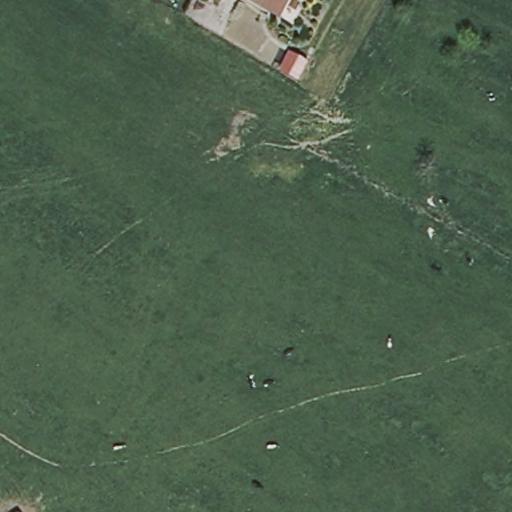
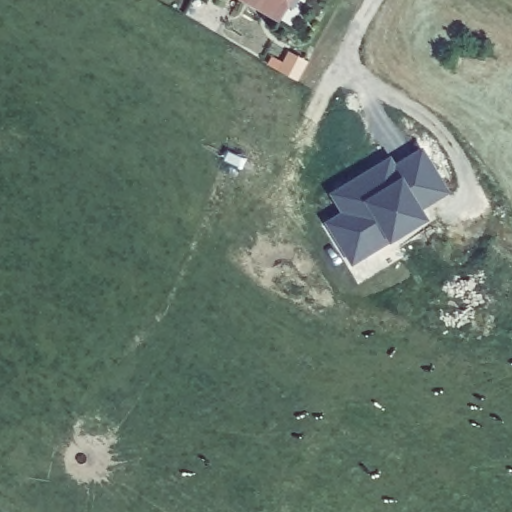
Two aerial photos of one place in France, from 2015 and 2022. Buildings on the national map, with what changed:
unchanged [(277,16),(250,0),(286,0),(277,16)]
new [(446,189),(450,197),(430,209),(437,217),(397,244),(393,236),(352,260),(330,222),(347,212),(335,193),(370,172),(390,159),(396,167),(422,151),(446,189)]

